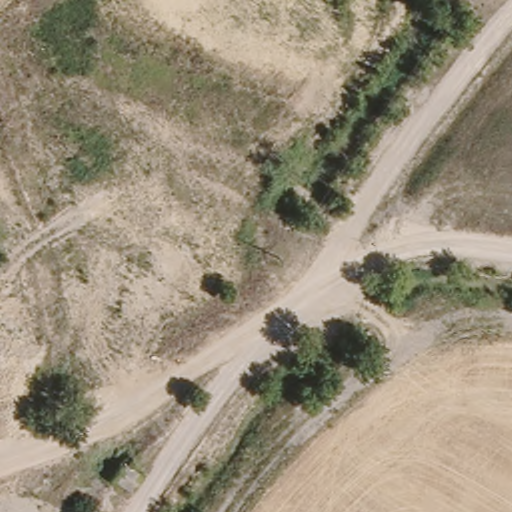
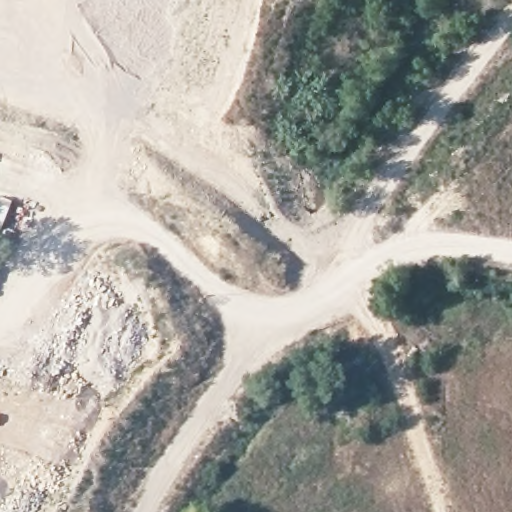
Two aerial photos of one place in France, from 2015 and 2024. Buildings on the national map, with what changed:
unchanged [(141,475),(130,492),(114,480),(126,465),(141,475)]

